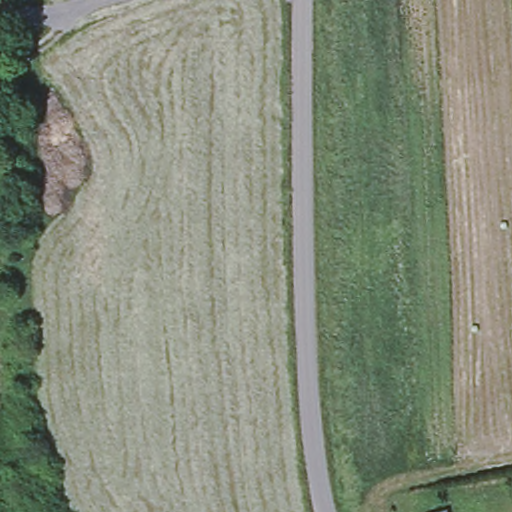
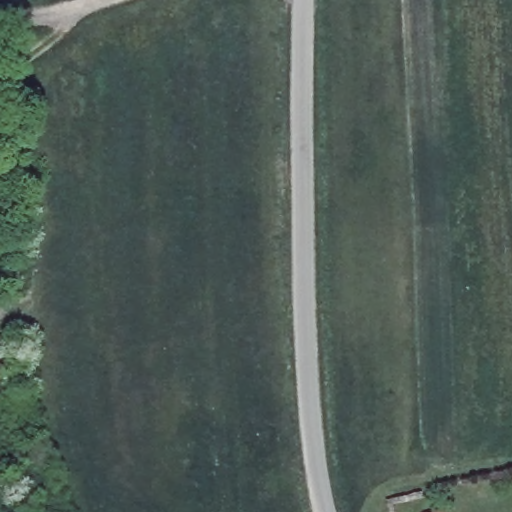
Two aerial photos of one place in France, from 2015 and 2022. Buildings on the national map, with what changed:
unchanged [(447,512),(440,512),(447,510),(447,512)]

